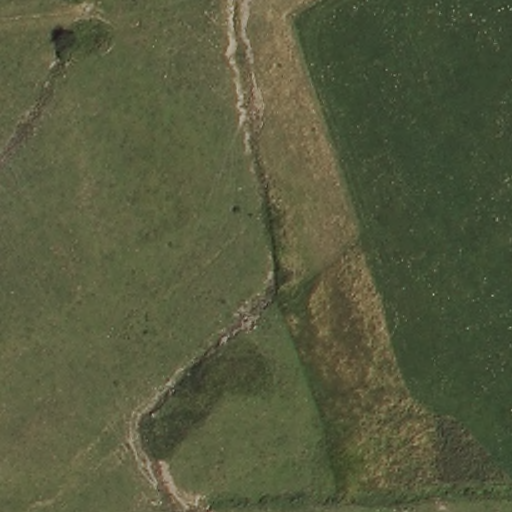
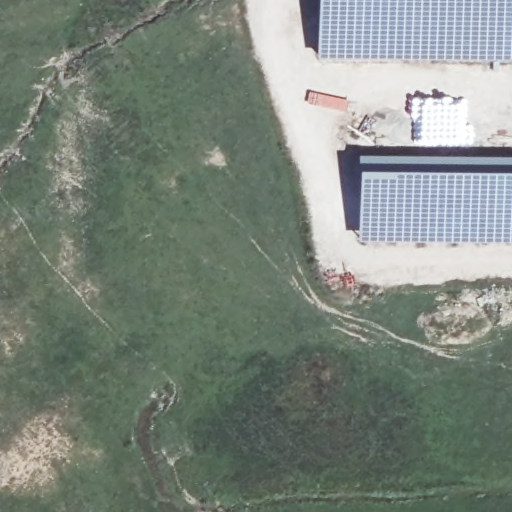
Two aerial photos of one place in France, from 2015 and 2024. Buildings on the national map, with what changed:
new [(512,0),(512,63),(325,62),(326,0),(512,0)]
new [(397,163),(512,164),(512,246),(397,245),(397,163)]

